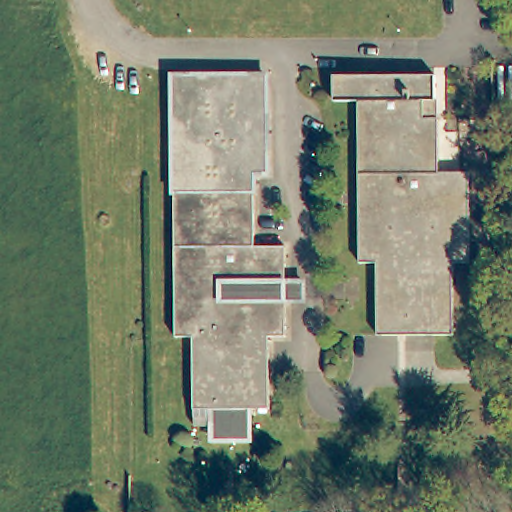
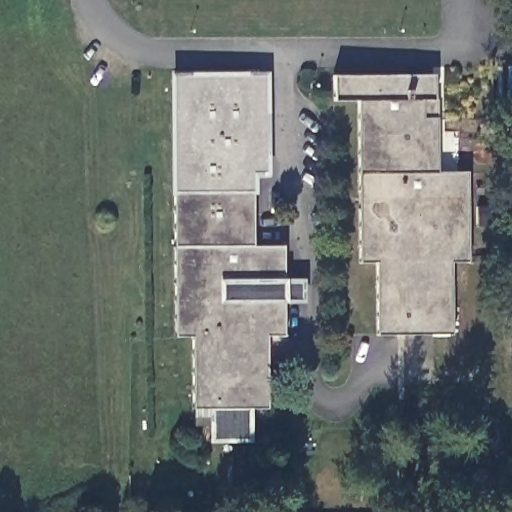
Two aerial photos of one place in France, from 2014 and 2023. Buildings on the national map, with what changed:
unchanged [(433,74),(433,116),(436,116),(436,171),(466,171),(466,260),(450,260),(450,332),(375,332),(375,260),(357,260),(357,99),(332,99),(332,74),(433,74)]
unchanged [(261,175),(248,176),(249,249),(278,249),(278,285),(296,285),(296,304),(278,304),(277,339),(262,339),(261,411),(249,411),(209,411),(187,411),(186,339),(169,339),(169,79),(260,78),(261,175)]
unchanged [(249,411),(248,441),(208,442),(209,411),(249,411)]

